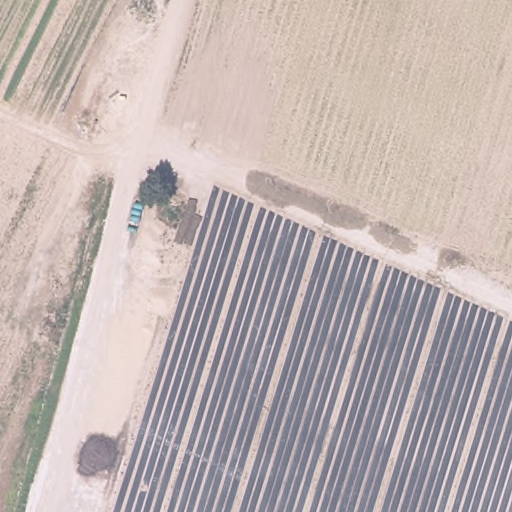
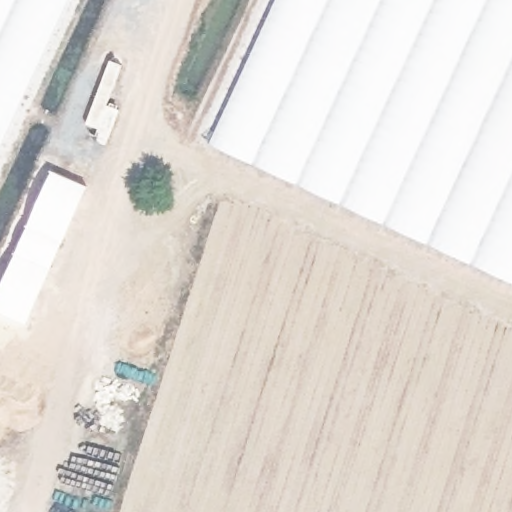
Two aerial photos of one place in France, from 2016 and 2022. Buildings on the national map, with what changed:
unchanged [(72,0),(0,154),(0,0),(72,0)]
new [(275,0),(512,0),(512,285),(207,146),(275,0)]

